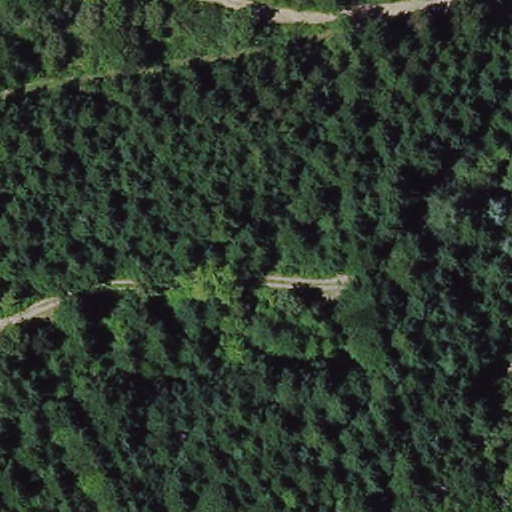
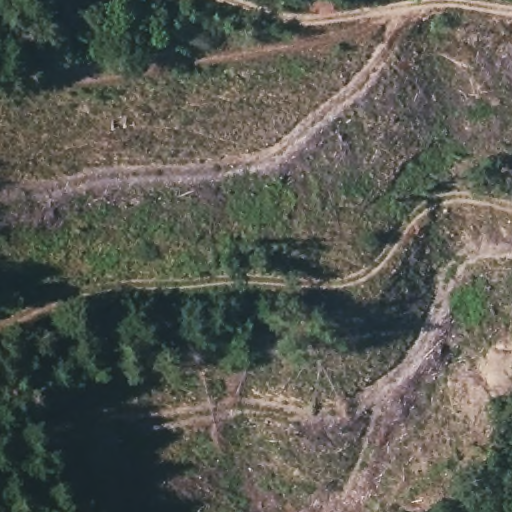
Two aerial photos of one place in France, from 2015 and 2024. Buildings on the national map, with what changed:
unchanged [(124,98),(125,111),(107,114),(107,100),(124,98)]

